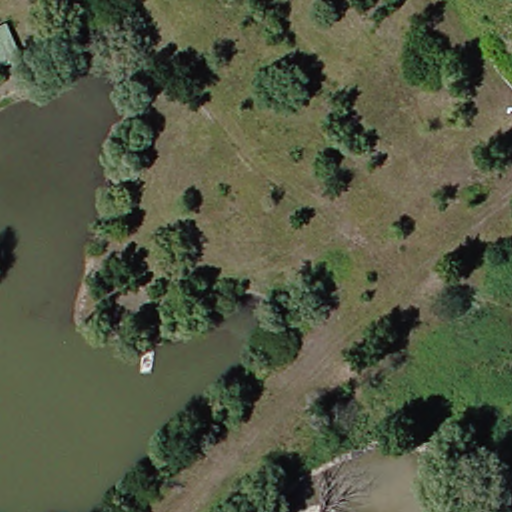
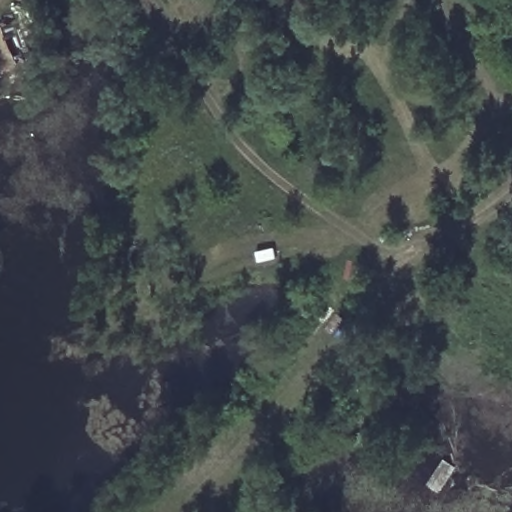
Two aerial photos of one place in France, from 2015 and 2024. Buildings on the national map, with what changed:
unchanged [(0,77),(0,29),(9,25),(26,66),(0,77)]

